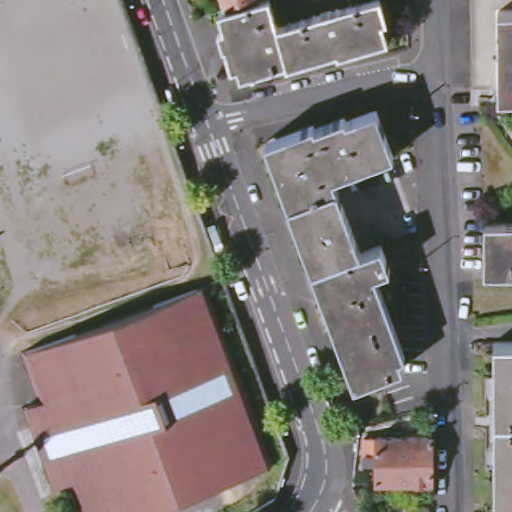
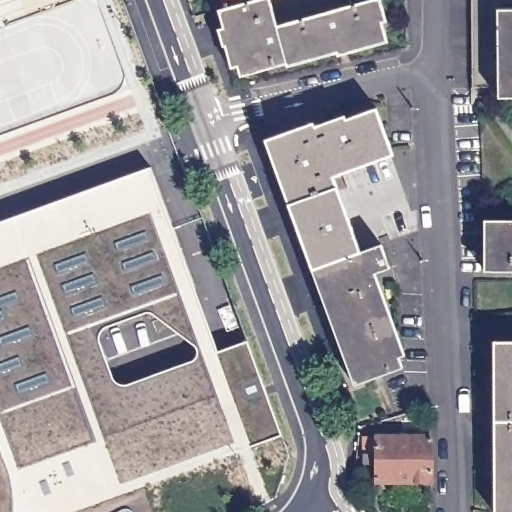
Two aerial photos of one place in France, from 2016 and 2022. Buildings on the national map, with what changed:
unchanged [(389,44),(341,57),(340,54),(290,69),(288,64),(242,76),(235,46),(232,47),(229,34),(227,34),(221,12),(223,11),(227,10),(259,1),(260,0),(262,0),(271,0),(280,28),(354,8),(352,0),(383,0),(390,23),(385,25),(389,44)]
unchanged [(227,10),(225,0),(259,0),(259,1),(227,10)]
unchanged [(474,100),(474,0),(500,0),(501,100),(474,100)]
unchanged [(501,101),(501,100),(500,0),(512,0),(512,101),(501,101)]
unchanged [(312,124),(314,127),(343,116),(345,120),(376,109),(393,156),(332,179),(360,251),(310,268),(262,141),(312,124)]
new [(195,287),(222,358),(251,347),(283,435),(74,512),(0,512),(0,223),(150,167),(195,287)]
unchanged [(487,275),(487,222),(512,223),(512,274),(487,275)]
unchanged [(390,240),(380,245),(377,239),(388,235),(390,240)]
unchanged [(369,276),(402,367),(353,385),(310,268),(360,251),(380,245),(389,268),(369,276)]
demolished [(203,286),(270,467),(147,512),(77,512),(66,485),(53,490),(24,410),(38,405),(20,353),(203,286)]
unchanged [(512,344),(512,512),(497,512),(497,344),(512,344)]
unchanged [(366,465),(365,439),(380,439),(380,437),(412,437),(412,460),(402,460),(402,482),(379,482),(378,465),(366,465)]
unchanged [(402,460),(412,460),(412,437),(434,437),(435,483),(402,482),(402,460)]
unchanged [(410,505),(427,506),(427,512),(410,512),(410,505)]

